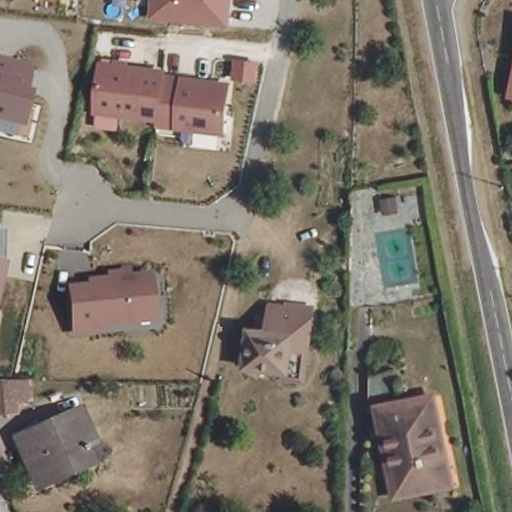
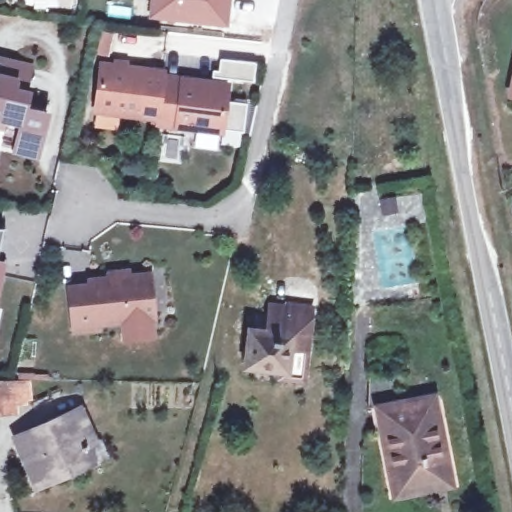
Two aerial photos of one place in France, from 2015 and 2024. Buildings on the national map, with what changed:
unchanged [(228,25),(148,18),(150,0),(231,0),(228,25)]
unchanged [(30,63),(25,88),(32,90),(23,126),(17,125),(15,136),(0,133),(0,57),(30,63)]
unchanged [(152,129),(151,123),(92,115),(100,59),(138,63),(138,67),(175,73),(175,77),(230,85),(227,135),(152,129)]
unchanged [(2,228),(2,261),(5,262),(0,288),(0,228),(2,228)]
unchanged [(102,321),(101,330),(70,332),(65,283),(89,280),(92,274),(108,273),(110,268),(127,266),(130,273),(152,272),(158,319),(102,321)]
unchanged [(247,350),(252,317),(267,319),(272,294),(309,299),(300,363),(284,361),(285,355),(247,350)]
unchanged [(17,385),(15,417),(0,417),(0,385),(17,385)]
unchanged [(399,492),(397,485),(382,407),(435,397),(447,457),(452,482),(399,492)]
unchanged [(38,475),(20,441),(82,409),(96,437),(87,442),(95,457),(72,468),(42,484),(38,475)]

